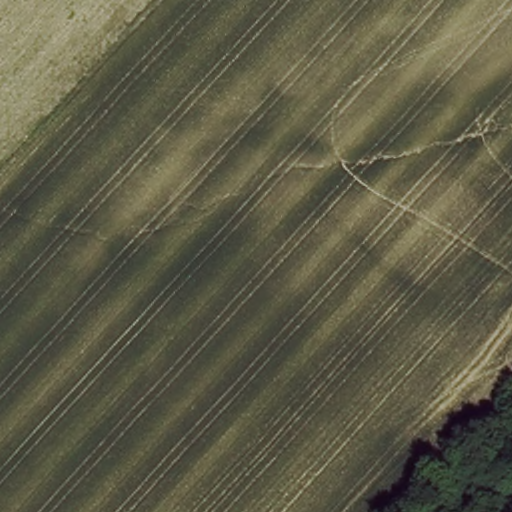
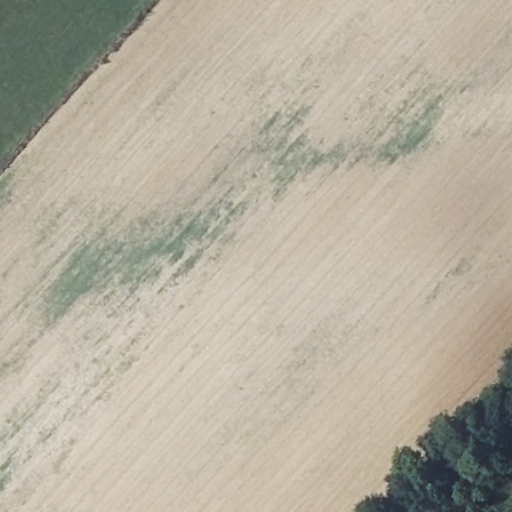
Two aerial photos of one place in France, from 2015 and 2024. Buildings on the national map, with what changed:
[]

